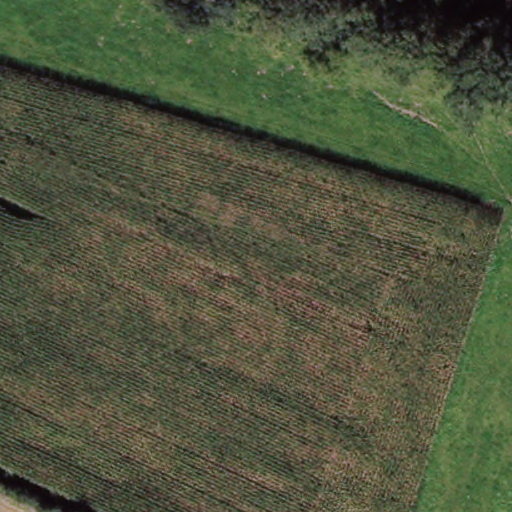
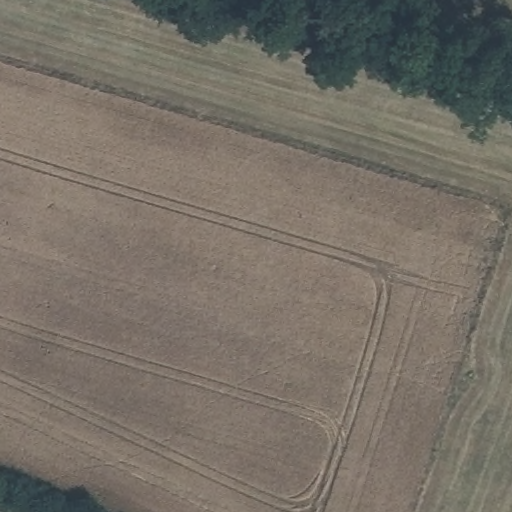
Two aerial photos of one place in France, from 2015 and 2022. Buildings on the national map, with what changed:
[]

